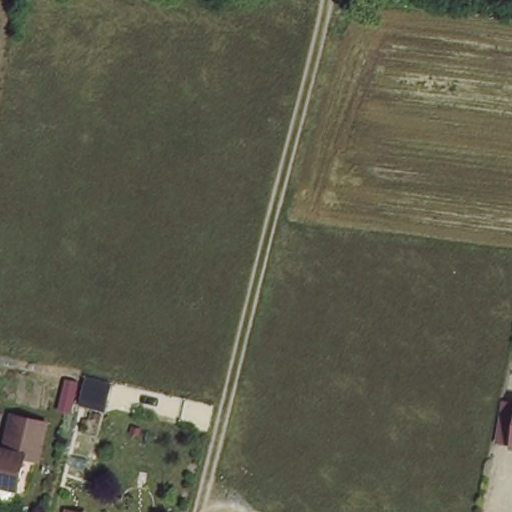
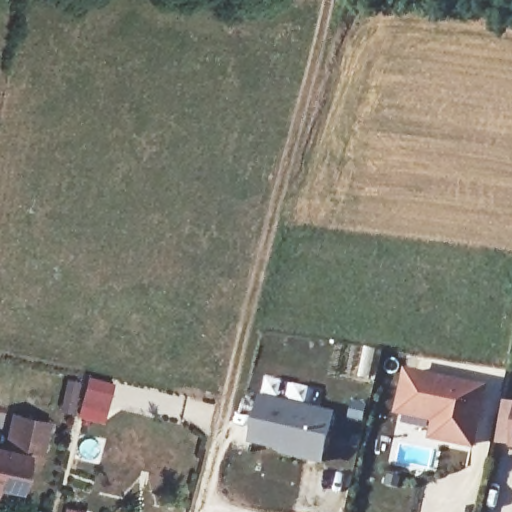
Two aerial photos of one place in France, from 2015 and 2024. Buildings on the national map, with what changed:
new [(427,441),(432,423),(393,415),(404,368),(489,386),(475,451),(427,441)]
new [(279,455),(280,450),(248,443),(259,395),(333,413),(322,466),(279,455)]
unchanged [(16,410),(48,420),(39,456),(26,451),(18,484),(0,479),(0,444),(6,446),(16,410)]
unchanged [(511,445),(512,436),(512,445),(511,445)]
unchanged [(90,511),(90,512),(63,512),(64,507),(90,511)]

